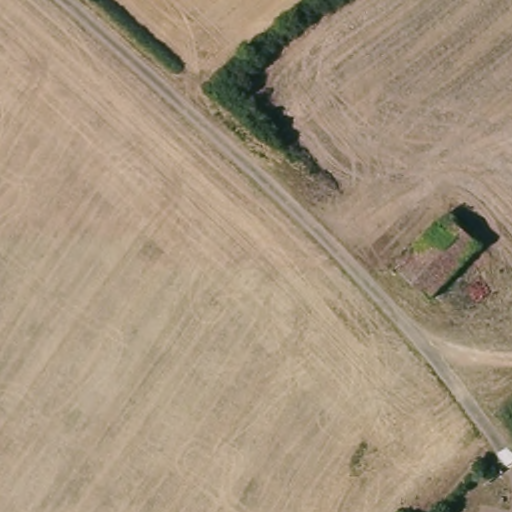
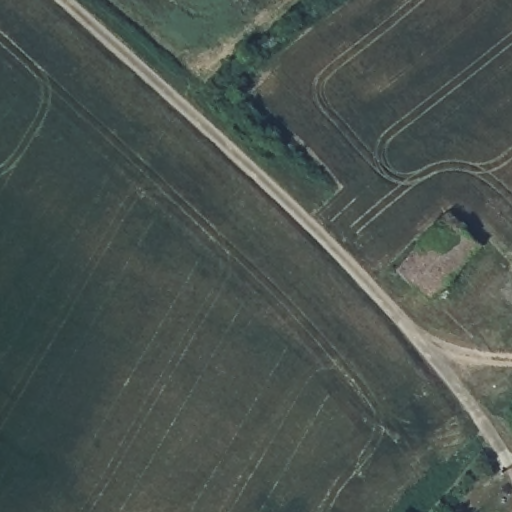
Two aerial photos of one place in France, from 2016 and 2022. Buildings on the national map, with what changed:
unchanged [(444,217),(452,224),(478,248),(428,302),(396,271),(444,217)]

